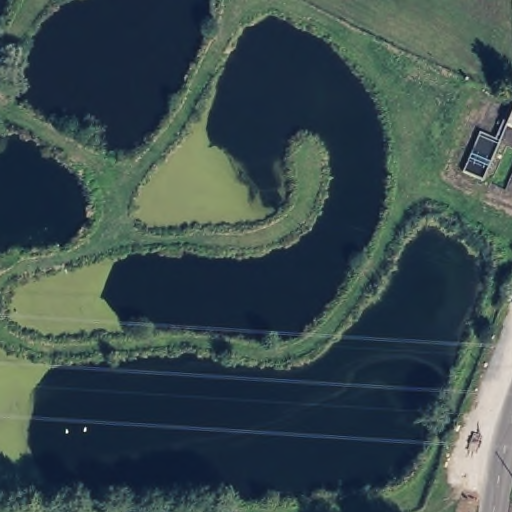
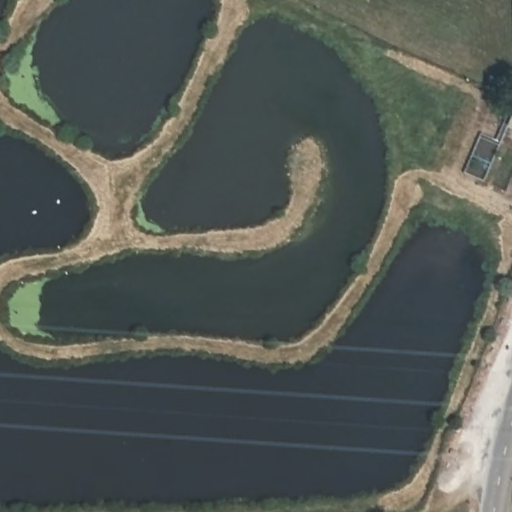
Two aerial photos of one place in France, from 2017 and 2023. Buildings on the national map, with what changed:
unchanged [(511,100),(512,101),(512,129),(502,125),(511,100)]
unchanged [(505,136),(486,180),(462,167),(479,126),(505,136)]

